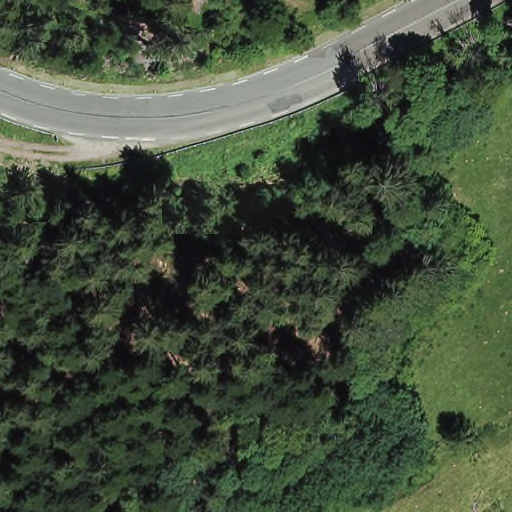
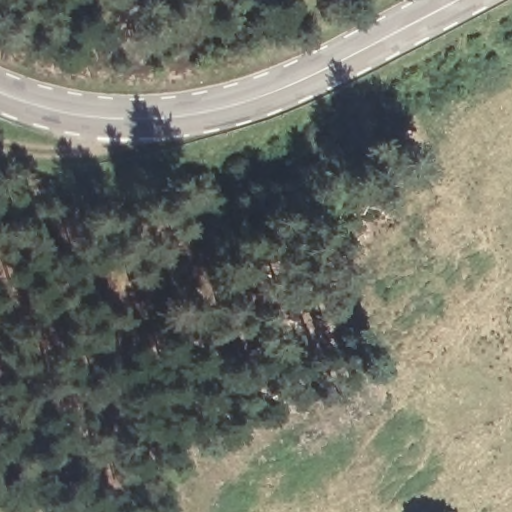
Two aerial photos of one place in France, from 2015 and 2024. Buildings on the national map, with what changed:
[]

